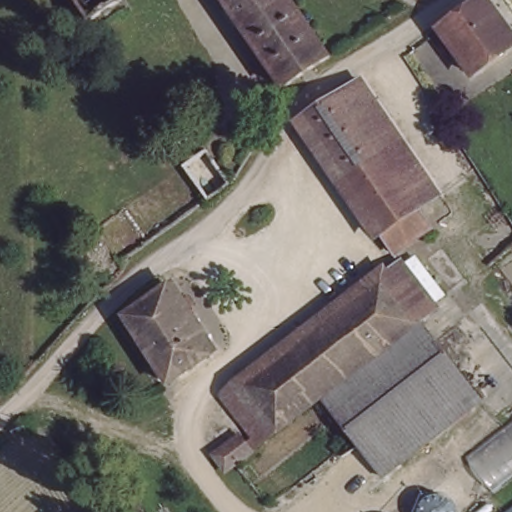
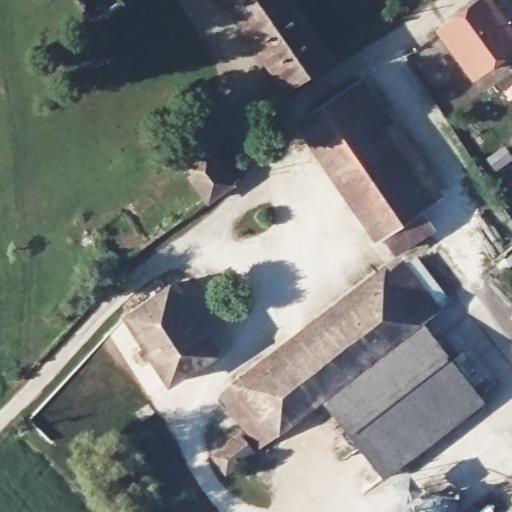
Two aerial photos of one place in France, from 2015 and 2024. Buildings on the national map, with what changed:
unchanged [(288,91),(224,0),(294,0),(334,58),(288,91)]
unchanged [(474,75),(444,33),(485,3),(512,43),(512,46),(474,75)]
unchanged [(336,96),(358,81),(432,190),(411,206),(336,96)]
unchanged [(411,206),(420,219),(387,242),(301,121),(336,96),(411,206)]
unchanged [(395,257),(431,303),(432,304),(421,313),(393,334),(337,379),(321,391),(277,424),(241,377),(395,257)]
unchanged [(179,284),(216,351),(171,379),(131,314),(137,308),(179,284)]
unchanged [(393,334),(421,313),(479,388),(380,469),(378,466),(353,433),(321,391),(337,379),(393,334)]
unchanged [(277,424),(253,443),(216,397),(241,377),(277,424)]
demolished [(510,507),(469,454),(512,424),(512,512),(505,512),(510,507)]
unchanged [(233,427),(247,446),(233,458),(217,471),(214,466),(204,450),(233,427)]
unchanged [(440,492),(452,495),(458,503),(460,512),(459,512),(424,512),(424,509),(425,502),(430,494),(440,492)]

